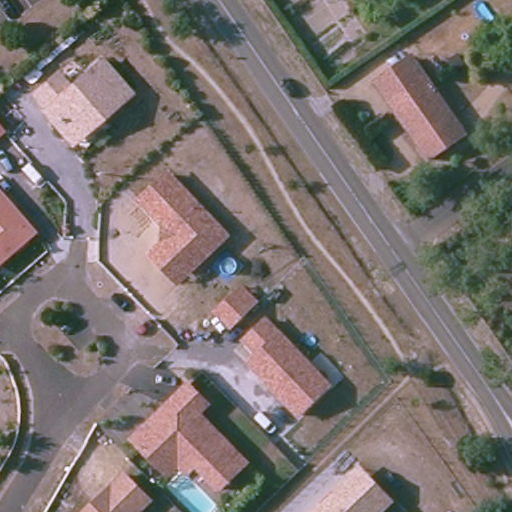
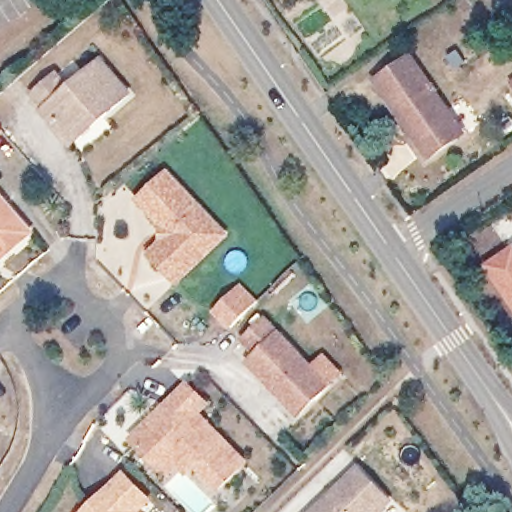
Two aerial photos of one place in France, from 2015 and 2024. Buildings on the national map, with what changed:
unchanged [(385,72),(407,56),(427,80),(431,74),(440,85),(433,90),(462,130),(428,156),(418,141),(375,80),(385,72)]
unchanged [(77,140),(40,99),(64,77),(76,91),(107,64),(137,97),(111,120),(82,146),(77,140)]
unchanged [(505,71),(512,67),(512,82),(505,71)]
unchanged [(0,135),(0,123),(6,130),(0,135)]
unchanged [(154,253),(165,242),(165,222),(142,199),(170,172),(219,224),(228,234),(181,280),(171,270),(154,253)]
unchanged [(0,262),(0,192),(35,232),(0,262)]
new [(486,266),(512,249),(512,306),(486,266)]
unchanged [(215,310),(236,288),(240,285),(255,301),(251,305),(230,325),(215,310)]
unchanged [(268,322),(331,388),(301,417),(252,365),(260,357),(247,342),(268,322)]
unchanged [(183,468),(172,480),(164,471),(143,450),(137,445),(143,439),(160,422),(171,410),(192,388),(211,407),(202,417),(251,465),(225,492),(201,468),(192,477),(183,468)]
unchanged [(84,512),(110,487),(123,473),(149,500),(136,512),(84,512)]
unchanged [(324,512),(354,483),(363,474),(378,490),(393,506),(388,512),(324,512)]

